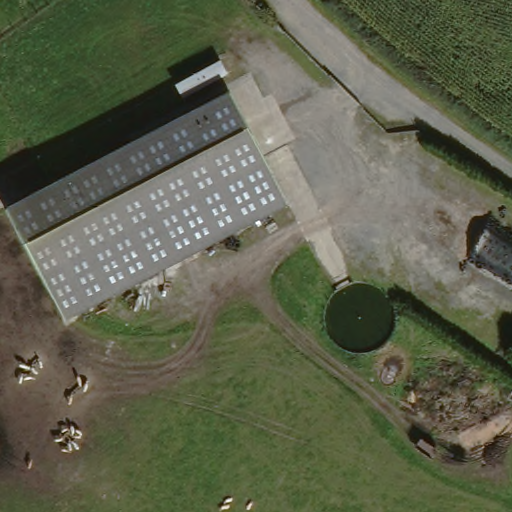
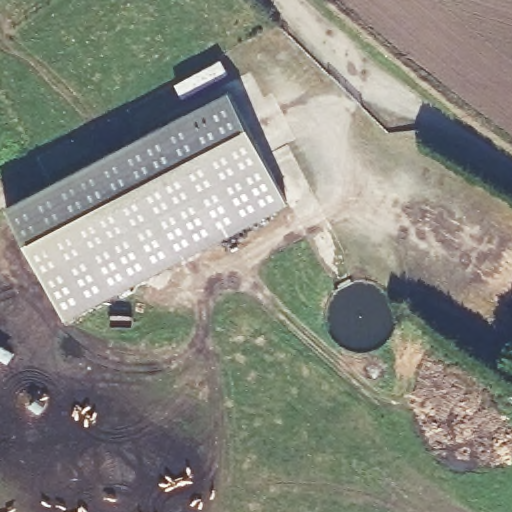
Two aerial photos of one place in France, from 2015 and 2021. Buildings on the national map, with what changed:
unchanged [(234,87),(292,202),(63,313),(8,199),(234,87)]

